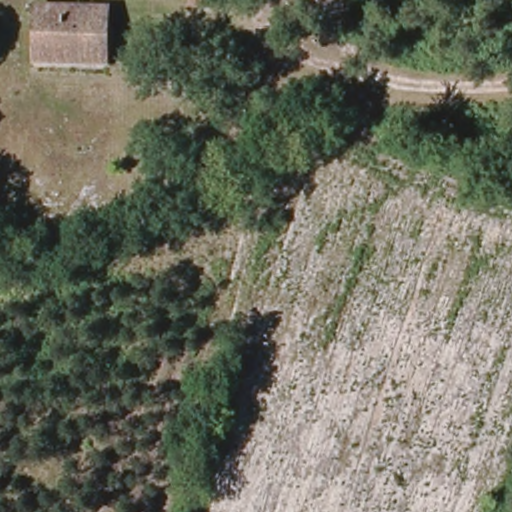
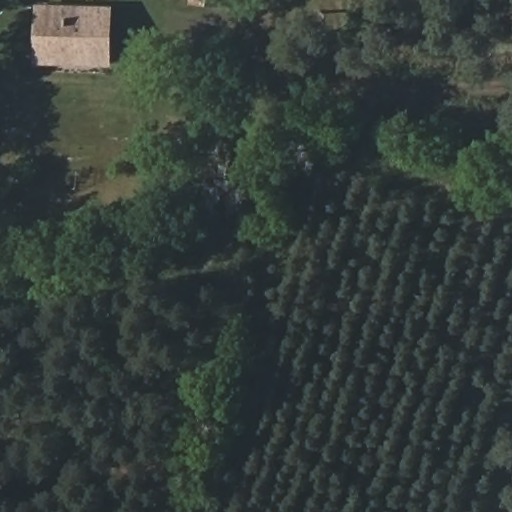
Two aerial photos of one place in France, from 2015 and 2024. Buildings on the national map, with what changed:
unchanged [(217,9),(194,9),(194,0),(217,0),(217,9)]
unchanged [(44,61),(42,10),(105,9),(105,60),(44,61)]

